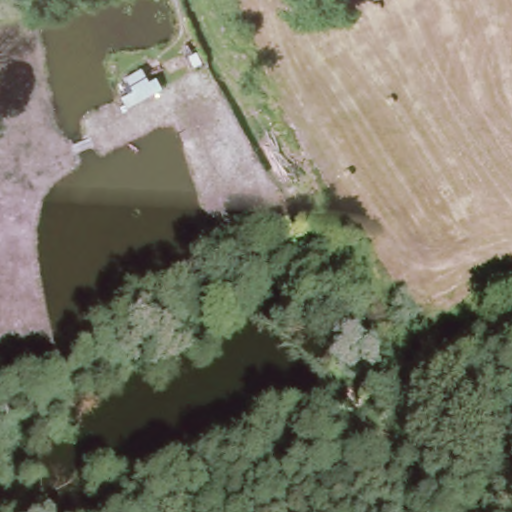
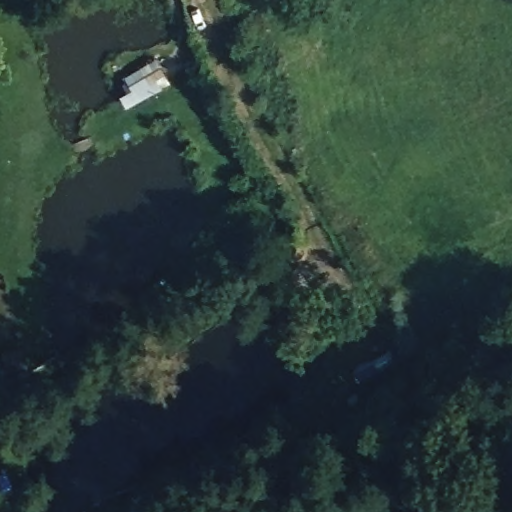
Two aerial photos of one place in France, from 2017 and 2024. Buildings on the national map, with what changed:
unchanged [(139,103),(133,94),(144,86),(137,76),(148,68),(156,80),(166,73),(171,81),(139,103)]

